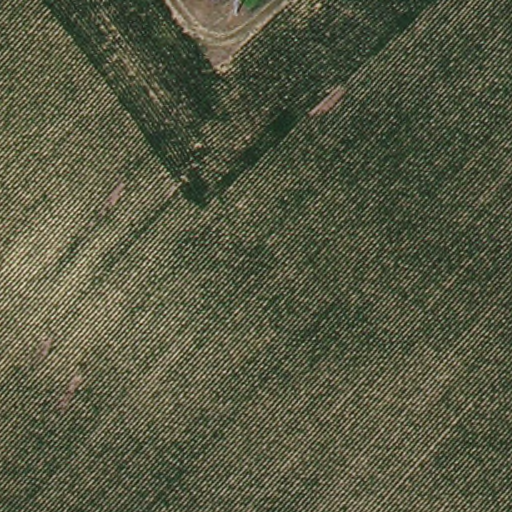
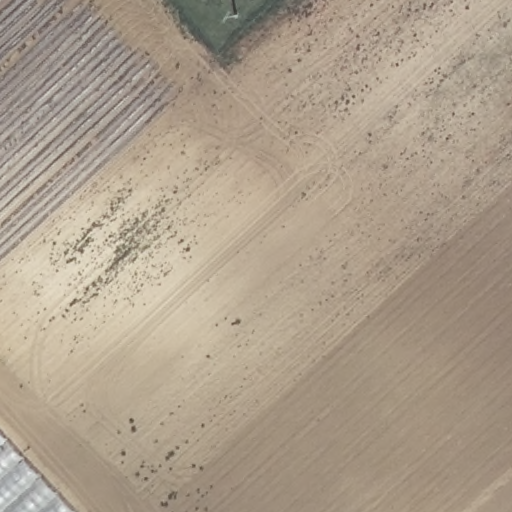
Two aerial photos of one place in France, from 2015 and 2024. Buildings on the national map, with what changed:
new [(0,512),(0,431),(74,512),(0,512)]

